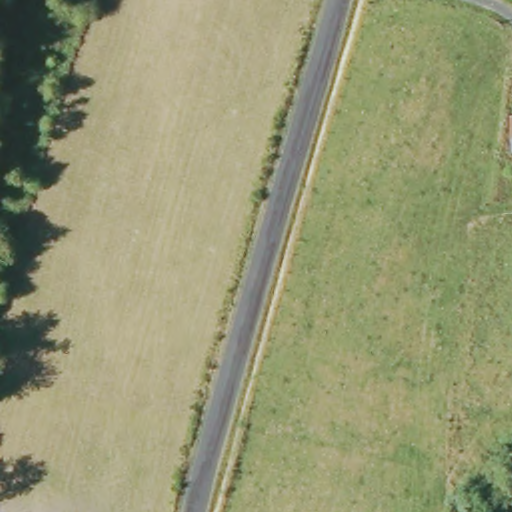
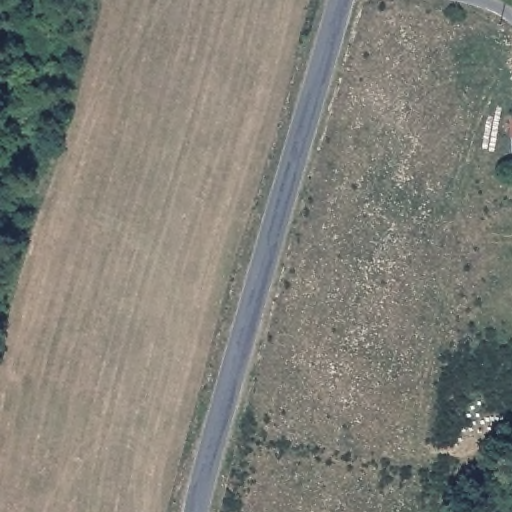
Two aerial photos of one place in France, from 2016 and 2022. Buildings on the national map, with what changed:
unchanged [(510,156),(510,118),(512,118),(512,155),(510,156)]

